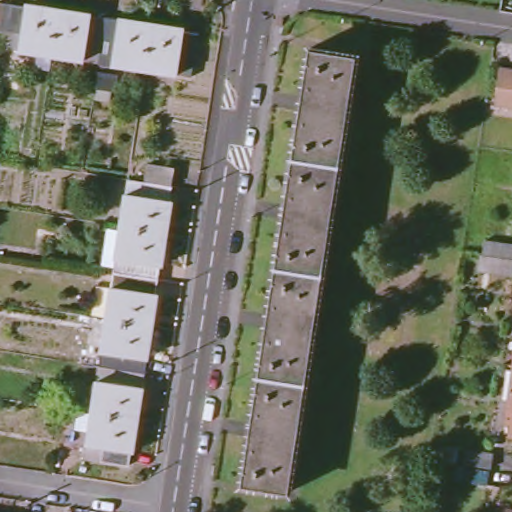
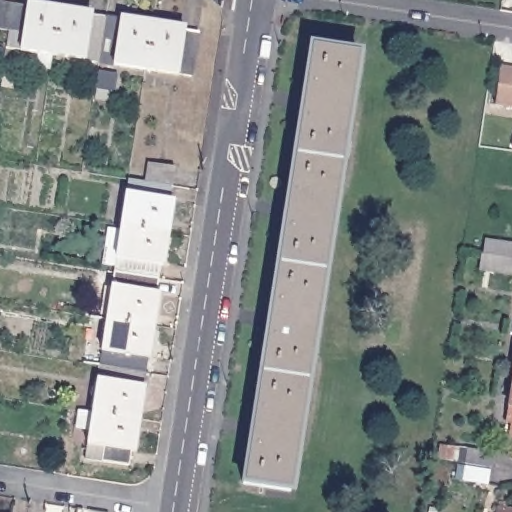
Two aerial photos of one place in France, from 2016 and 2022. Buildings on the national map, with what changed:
unchanged [(0,44),(2,30),(3,28),(0,28),(0,0),(5,0),(7,0),(22,3),(23,0),(53,5),(46,51),(0,44)]
unchanged [(88,10),(87,13),(101,15),(94,59),(46,51),(53,5),(88,10)]
unchanged [(148,19),(140,66),(94,59),(101,15),(115,17),(115,14),(148,19)]
unchanged [(180,24),(179,27),(195,30),(188,74),(140,66),(148,19),(180,24)]
unchanged [(312,47),(360,55),(292,492),(245,485),(312,47)]
unchanged [(110,71),(107,87),(92,84),(95,70),(110,71)]
unchanged [(512,73),(512,111),(496,109),(502,72),(512,73)]
unchanged [(175,197),(178,199),(173,230),(126,221),(133,175),(149,177),(152,160),(179,165),(176,181),(178,182),(175,197)]
unchanged [(168,262),(165,261),(162,276),(118,269),(119,262),(107,260),(112,224),(125,226),(126,221),(173,230),(168,262)]
unchanged [(482,254),(485,255),(487,239),(512,242),(512,274),(480,268),(482,254)]
unchanged [(162,276),(160,292),(163,292),(158,325),(110,316),(118,269),(162,276)]
unchanged [(158,325),(151,370),(102,362),(110,316),(158,325)]
unchanged [(151,370),(143,416),(95,408),(102,362),(151,370)]
unchanged [(508,436),(510,423),(505,423),(512,372),(512,436),(508,436)]
unchanged [(143,416),(138,448),(135,448),(132,463),(87,456),(95,408),(143,416)]
unchanged [(495,451),(492,466),(432,459),(435,443),(495,451)]
unchanged [(497,506),(512,509),(512,512),(497,512),(497,506)]

